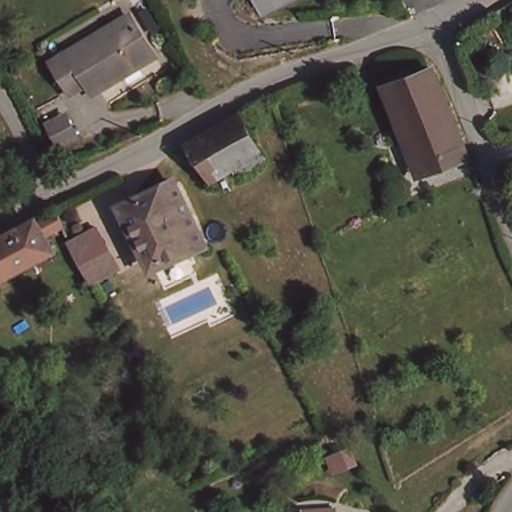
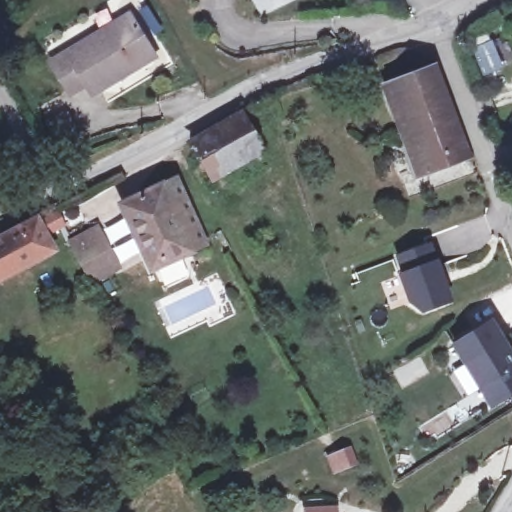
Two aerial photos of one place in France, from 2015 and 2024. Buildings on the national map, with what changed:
new [(254,0),(294,0),(262,16),(254,0)]
unchanged [(126,15),(150,59),(93,94),(81,76),(68,85),(51,59),(126,15)]
unchanged [(428,70),(462,156),(417,175),(383,89),(428,70)]
unchanged [(193,147),(248,115),(267,148),(212,179),(193,147)]
unchanged [(174,188),(200,240),(152,263),(126,211),(174,188)]
unchanged [(0,274),(0,236),(28,221),(30,225),(48,215),(55,229),(38,237),(46,250),(0,274)]
unchanged [(90,274),(70,237),(97,224),(118,261),(91,277),(90,274)]
new [(394,255),(431,243),(437,260),(452,304),(418,313),(408,306),(398,275),(394,255)]
new [(512,353),(512,394),(489,408),(450,345),(492,320),(512,353)]
unchanged [(302,503),(335,500),(337,512),(303,512),(302,503)]

